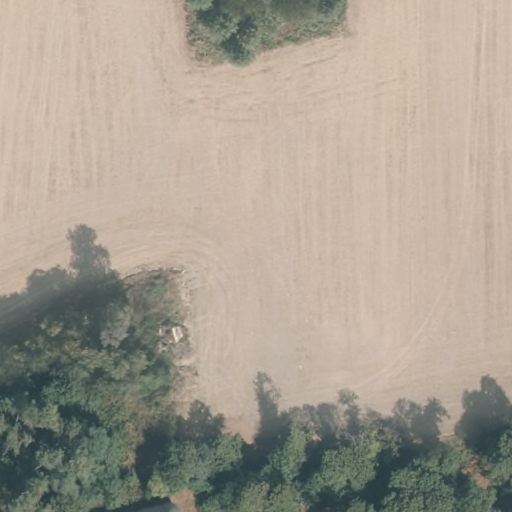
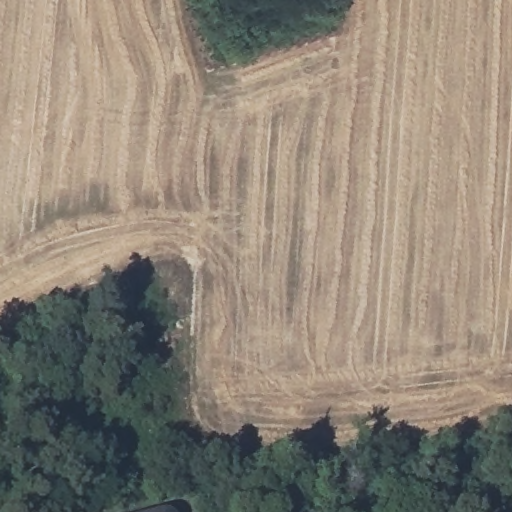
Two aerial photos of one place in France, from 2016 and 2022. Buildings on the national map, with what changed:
unchanged [(174,512),(145,512),(159,509),(174,511),(174,512)]

